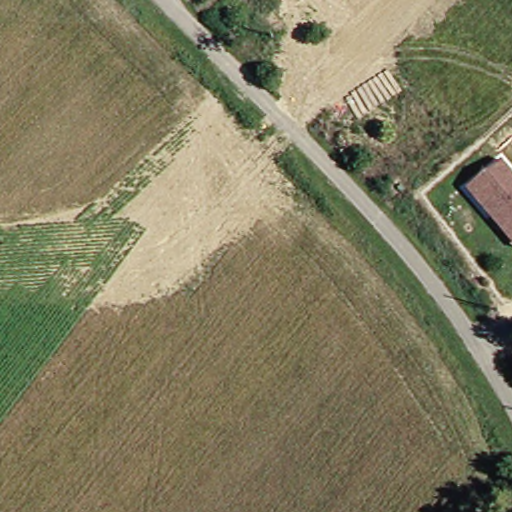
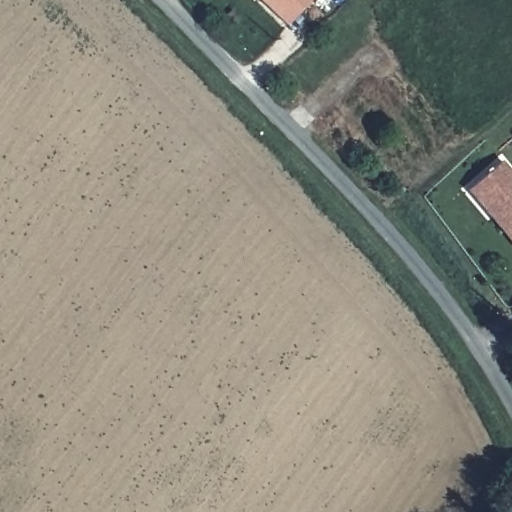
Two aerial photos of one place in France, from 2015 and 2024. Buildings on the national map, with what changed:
new [(260,0),(311,0),(287,26),(260,0)]
unchanged [(465,190),(498,160),(512,175),(512,245),(485,214),(465,190)]

